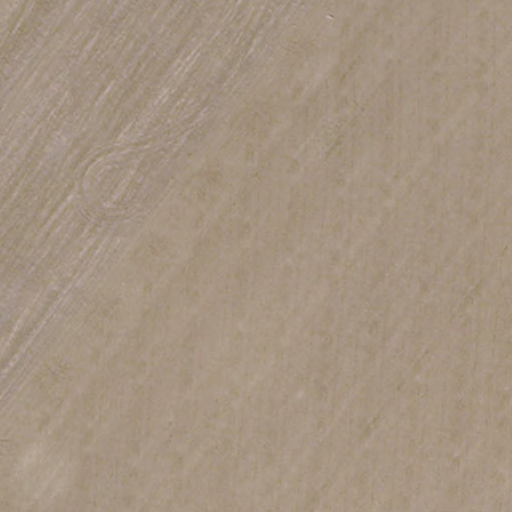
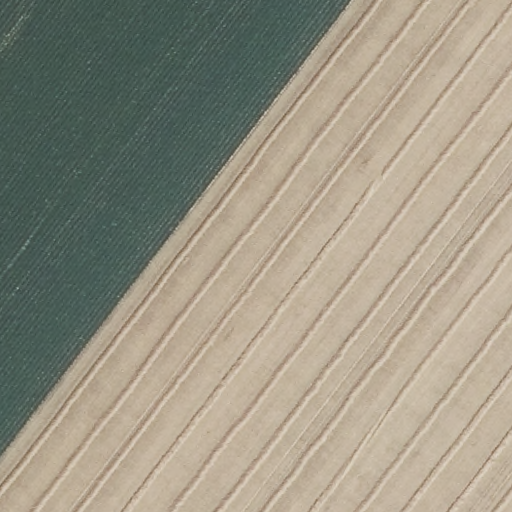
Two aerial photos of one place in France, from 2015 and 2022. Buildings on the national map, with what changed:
[]

